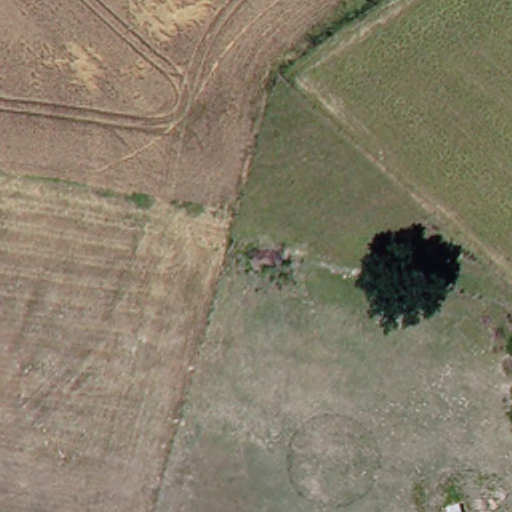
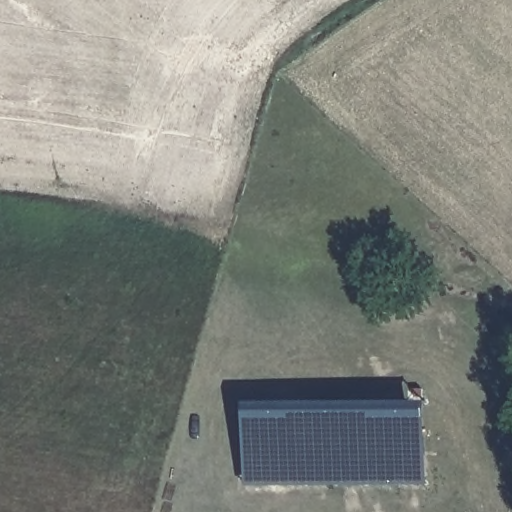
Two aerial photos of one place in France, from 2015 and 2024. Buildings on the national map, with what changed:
new [(427,401),(427,484),(245,485),(245,401),(427,401)]

